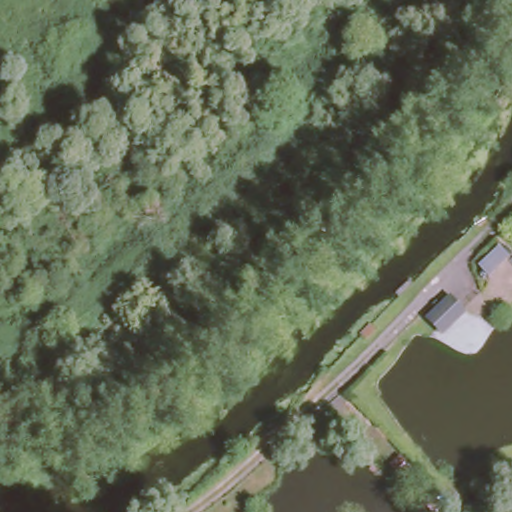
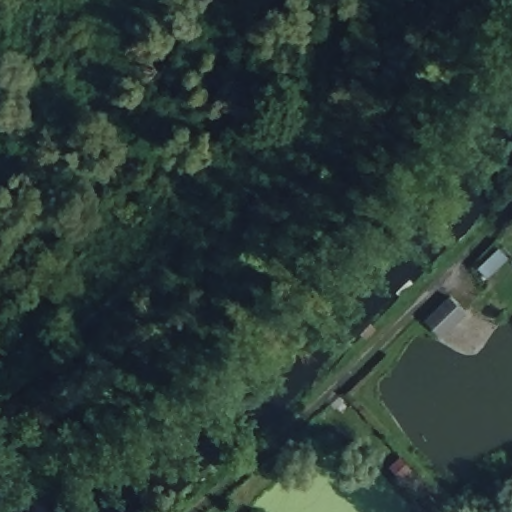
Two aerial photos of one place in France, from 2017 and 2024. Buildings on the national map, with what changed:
unchanged [(467,315),(443,340),(423,320),(449,297),(467,315)]

